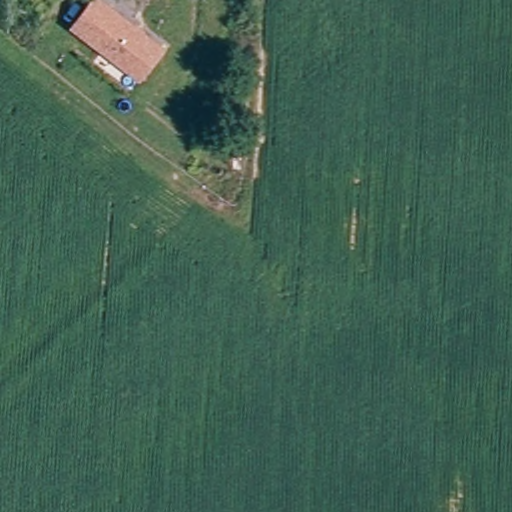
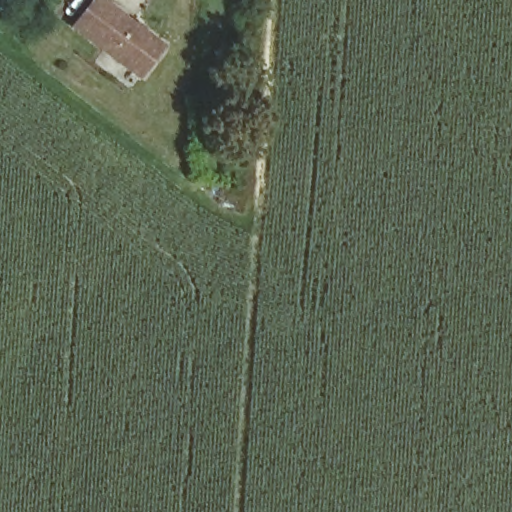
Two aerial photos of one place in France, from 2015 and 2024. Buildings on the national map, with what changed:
unchanged [(0,9),(0,4),(2,0),(46,0),(34,25),(0,9)]
unchanged [(71,26),(90,0),(102,0),(162,44),(151,60),(140,75),(132,69),(71,26)]

